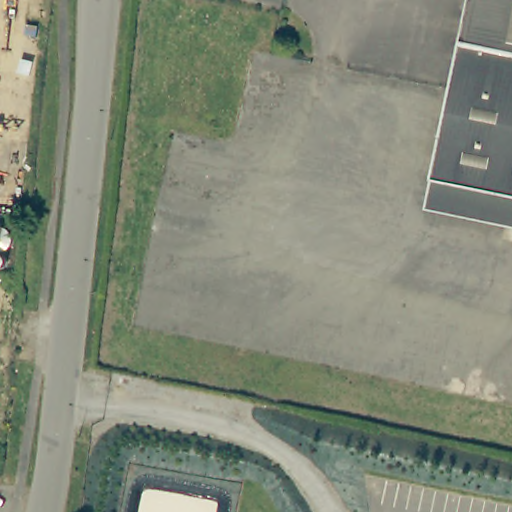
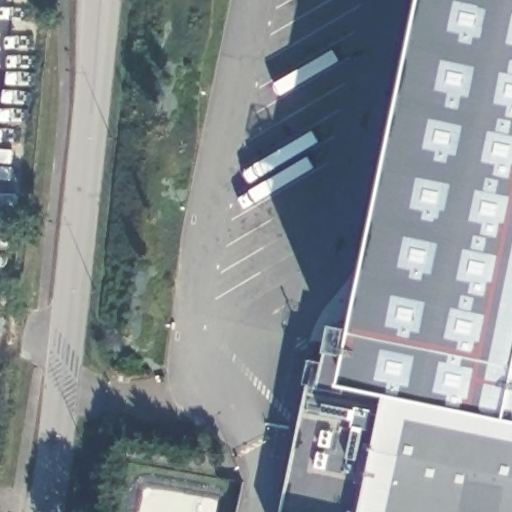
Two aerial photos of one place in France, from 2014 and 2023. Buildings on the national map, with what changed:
new [(389,390),(355,382),(360,357),(430,0),(512,0),(512,413),(389,390)]
demolished [(450,83),(467,0),(512,0),(512,192),(431,175),(450,83)]
new [(310,385),(305,384),(310,359),(325,362),(328,349),(360,357),(355,382),(389,390),(512,413),(512,512),(283,512),(310,385)]

